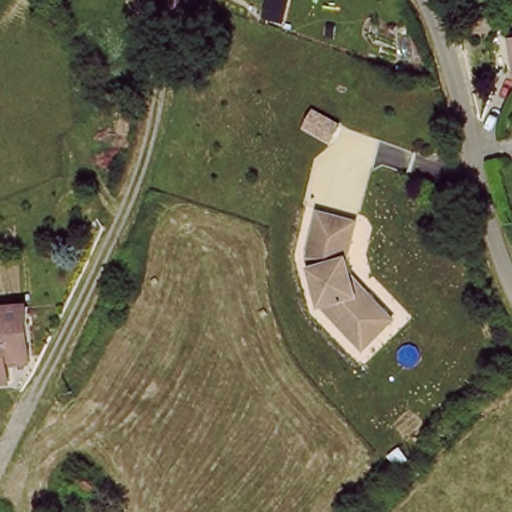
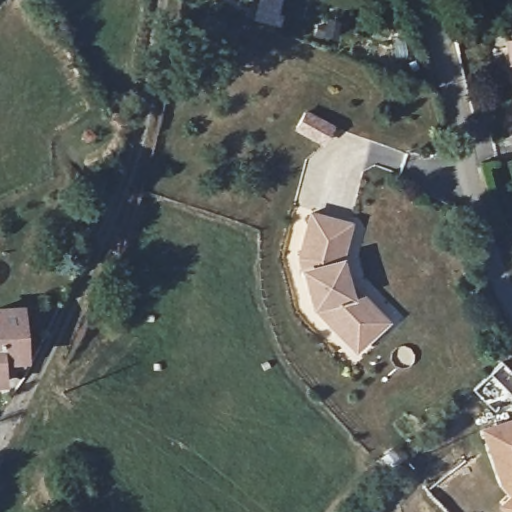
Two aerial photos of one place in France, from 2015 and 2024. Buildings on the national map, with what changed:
unchanged [(349,355),(333,337),(307,310),(294,263),(305,219),(343,229),(334,265),(344,300),(353,297),(374,321),(379,326),(349,355)]
unchanged [(4,360),(4,382),(0,383),(0,303),(19,301),(23,359),(4,360)]
new [(512,418),(512,512),(502,512),(498,507),(510,496),(500,486),(480,430),(512,418)]

